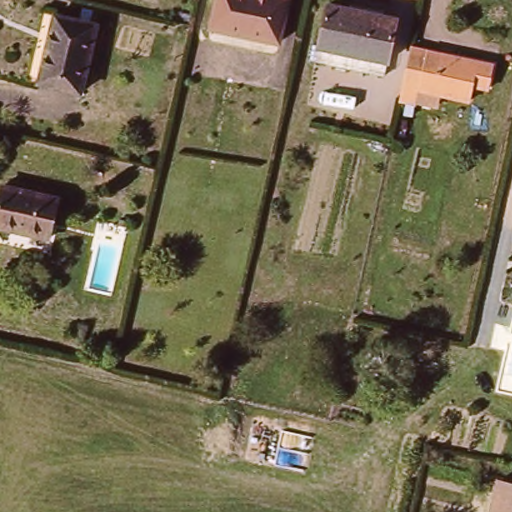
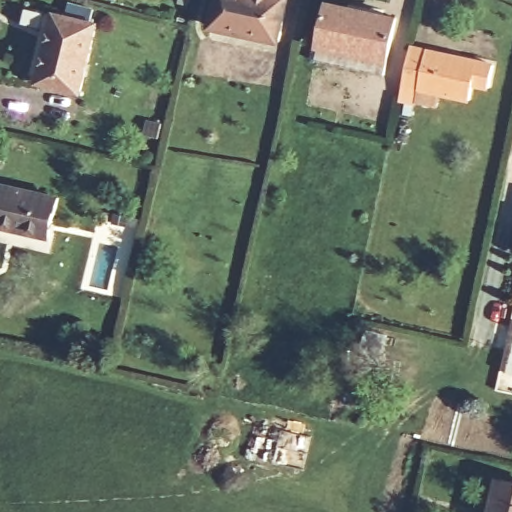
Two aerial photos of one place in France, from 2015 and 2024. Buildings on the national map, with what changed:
unchanged [(210,25),(216,0),(288,0),(278,41),(210,25)]
unchanged [(400,20),(385,79),(317,62),(331,4),(400,20)]
unchanged [(80,95),(36,86),(52,17),(95,26),(80,95)]
unchanged [(415,105),(402,102),(414,46),(497,66),(492,89),(475,85),(471,101),(438,95),(434,111),(415,105)]
unchanged [(3,181),(62,195),(52,232),(49,245),(0,234),(0,196),(3,181)]
unchanged [(512,512),(494,512),(502,481),(512,484),(512,512)]

